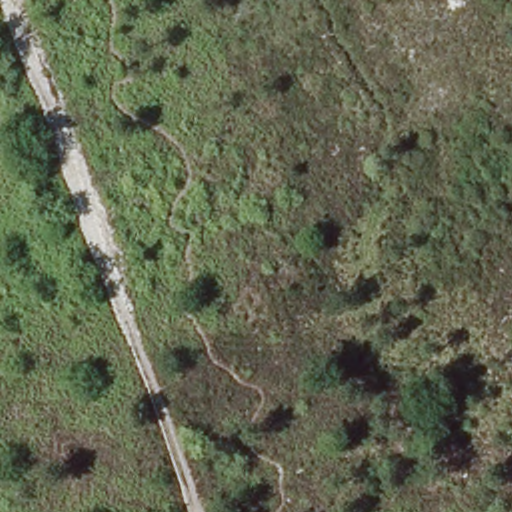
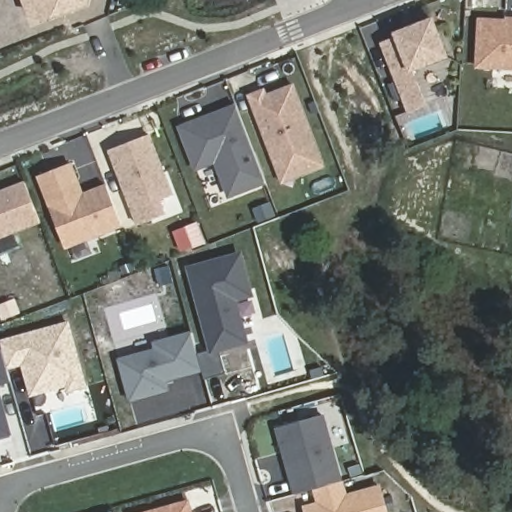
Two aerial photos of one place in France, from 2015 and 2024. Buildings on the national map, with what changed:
new [(85,5),(44,20),(29,16),(24,0),(87,0),(85,5)]
new [(445,56),(411,70),(426,104),(409,111),(382,43),(395,37),(394,33),(430,19),(445,56)]
new [(512,68),(475,66),(477,20),(512,21),(512,68)]
new [(325,166),(281,184),(245,95),(265,88),(267,93),(293,84),(325,166)]
new [(195,171),(178,125),(234,103),(265,185),(227,199),(214,164),(195,171)]
new [(160,200),(165,213),(136,224),(107,151),(150,133),(174,194),(160,200)]
new [(81,194),(105,185),(120,227),(65,247),(39,177),(71,164),(81,194)]
new [(24,181),(40,223),(0,239),(0,190),(24,181)]
new [(237,344),(219,349),(226,373),(204,380),(201,370),(197,354),(211,350),(189,269),(239,255),(248,289),(250,294),(233,299),(244,337),(245,341),(237,344)]
new [(67,324),(85,386),(68,391),(66,385),(31,395),(22,364),(7,369),(0,343),(67,324)]
new [(155,350),(154,343),(191,333),(197,354),(201,370),(164,380),(167,390),(130,400),(118,360),(155,350)]
new [(2,351),(10,381),(0,384),(0,352),(2,351)]
new [(0,437),(0,400),(8,430),(9,434),(0,437)]
new [(276,427),(322,415),(341,481),(314,489),(295,494),(285,460),(283,452),(276,427)]
new [(314,489),(341,481),(345,496),(379,486),(386,512),(305,512),(304,507),(318,503),(314,489)]
new [(173,504),(187,500),(191,512),(157,512),(174,506),(173,504)]
new [(155,512),(148,512),(154,510),(155,512)]

